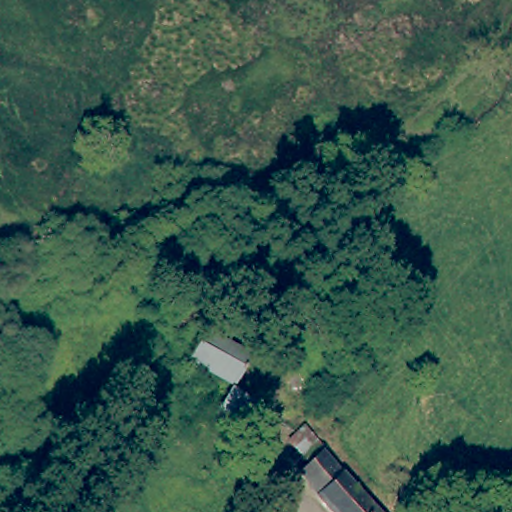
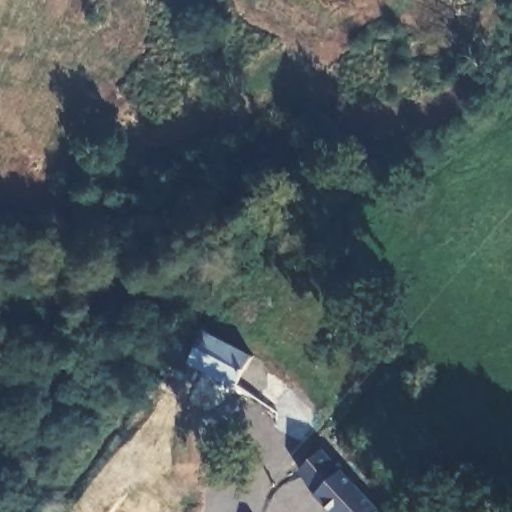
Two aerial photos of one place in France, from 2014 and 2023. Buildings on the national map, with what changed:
unchanged [(272,415),(250,442),(212,410),(234,382),(204,357),(222,332),(263,367),(244,390),(272,415)]
unchanged [(302,468),(325,449),(377,512),(329,512),(314,494),(302,468)]

